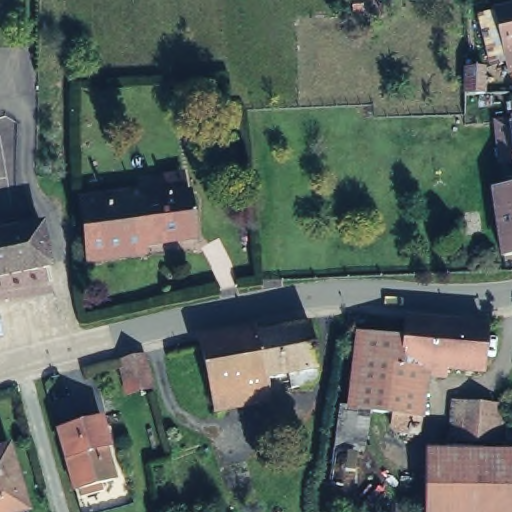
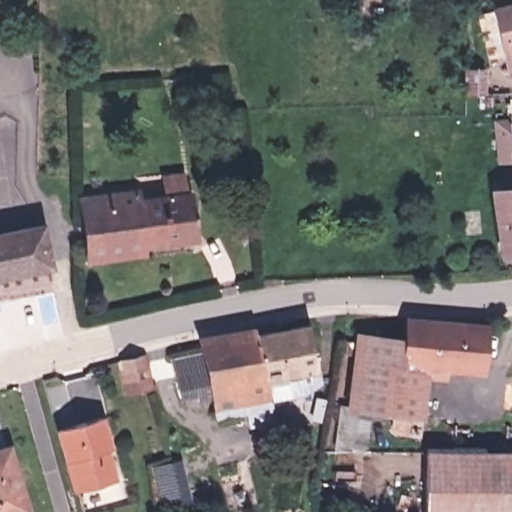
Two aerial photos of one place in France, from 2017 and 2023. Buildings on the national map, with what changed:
unchanged [(502,61),(490,2),(502,0),(512,0),(512,59),(502,61)]
unchanged [(477,91),(457,92),(457,67),(477,66),(477,91)]
unchanged [(512,116),(512,121),(510,116),(512,116)]
unchanged [(501,157),(498,123),(512,121),(512,157),(501,157)]
unchanged [(503,255),(492,186),(504,184),(504,185),(512,184),(512,255),(503,255)]
unchanged [(150,190),(150,197),(194,192),(202,237),(112,249),(112,258),(95,259),(89,197),(150,190)]
unchanged [(54,259),(0,271),(0,229),(45,218),(45,219),(54,259)]
unchanged [(395,419),(396,405),(347,400),(357,331),(406,336),(409,314),(485,323),(481,366),(427,361),(421,408),(420,408),(419,421),(395,419)]
unchanged [(318,371),(268,384),(272,400),(210,410),(191,344),(302,321),(318,371)]
unchanged [(126,390),(119,357),(142,353),(148,387),(126,390)]
unchanged [(105,443),(101,444),(110,474),(71,486),(55,428),(97,417),(105,443)]
unchanged [(0,507),(0,444),(8,442),(23,501),(0,507)]
unchanged [(426,512),(423,455),(512,454),(512,512),(426,512)]

